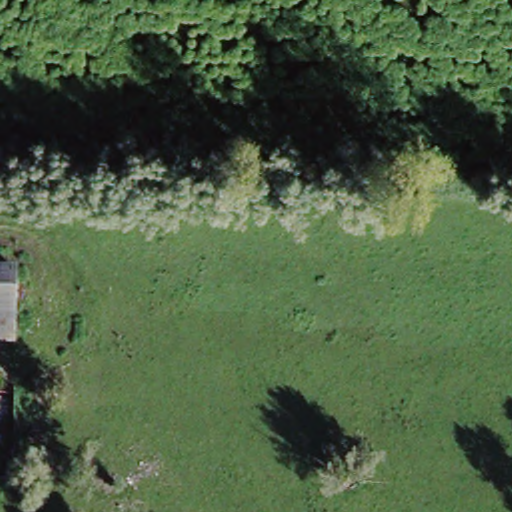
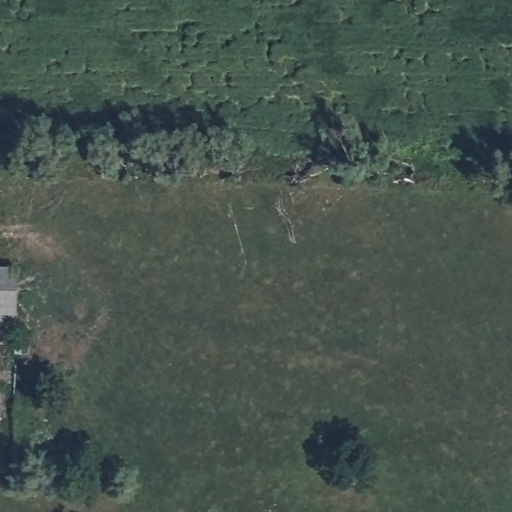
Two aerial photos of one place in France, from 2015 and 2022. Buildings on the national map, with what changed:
unchanged [(15,268),(17,347),(0,347),(0,269),(15,268)]

